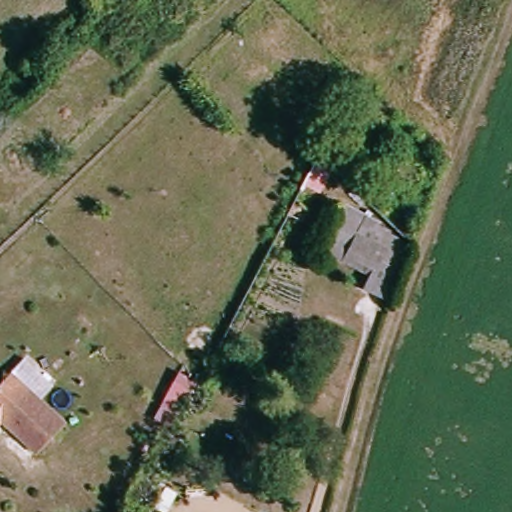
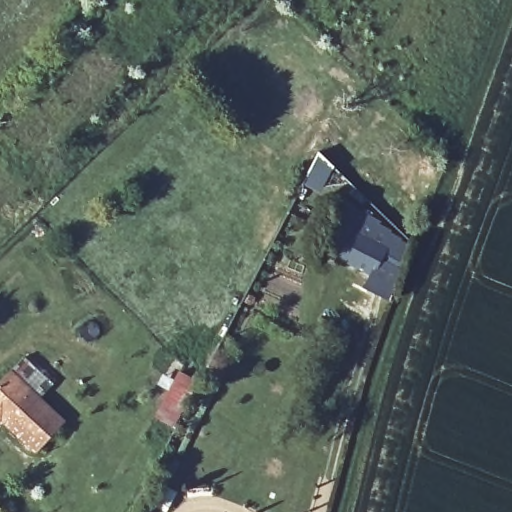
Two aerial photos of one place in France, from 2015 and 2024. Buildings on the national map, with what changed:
unchanged [(388,302),(362,291),(367,280),(320,257),(340,215),(409,240),(388,302)]
unchanged [(6,373),(61,425),(32,456),(0,426),(0,381),(6,373)]

